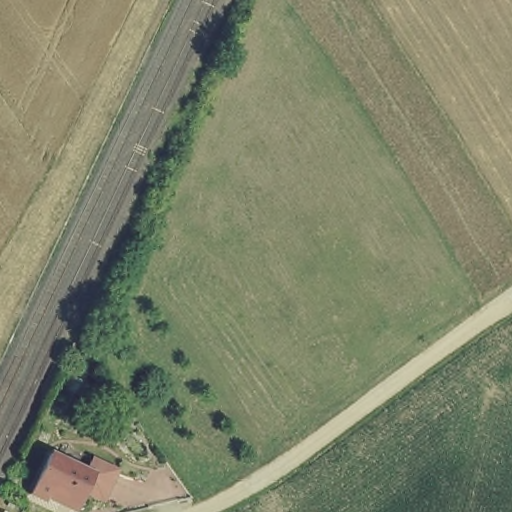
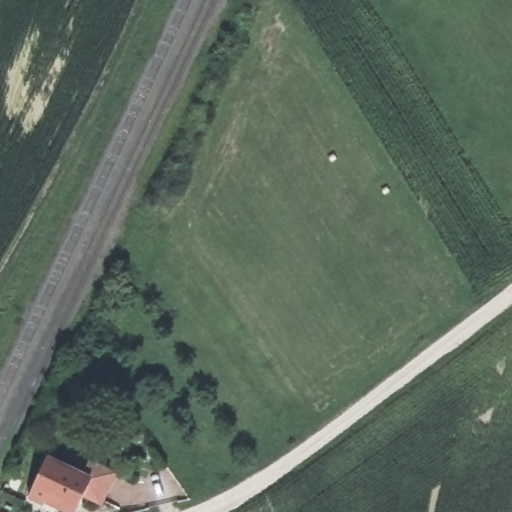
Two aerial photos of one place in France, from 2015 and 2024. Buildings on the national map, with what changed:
unchanged [(79,512),(51,512),(30,503),(52,457),(96,476),(79,512)]

